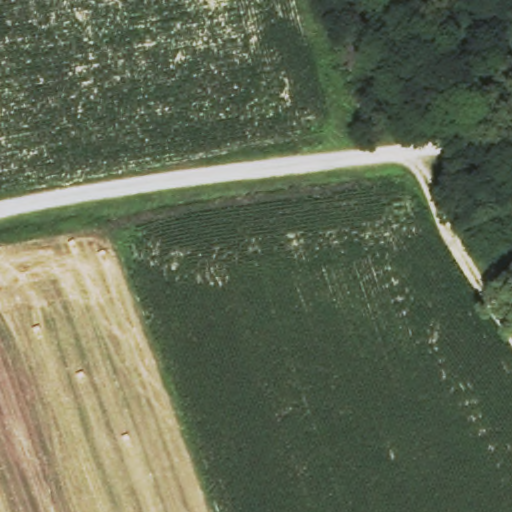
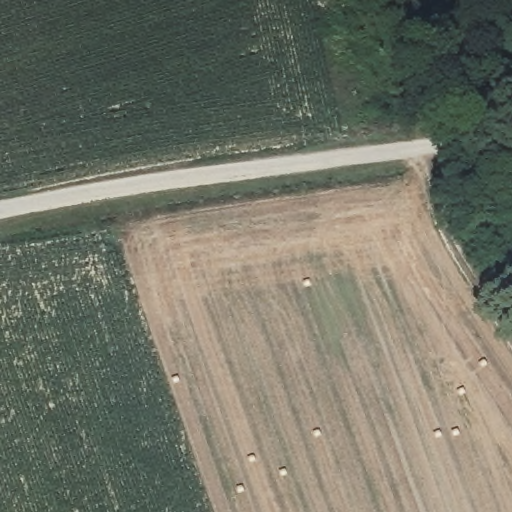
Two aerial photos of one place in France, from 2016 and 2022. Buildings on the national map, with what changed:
unchanged [(512,267),(512,285),(505,272),(512,267)]

